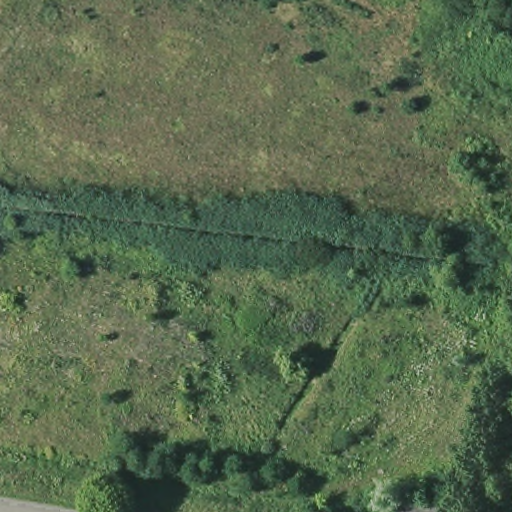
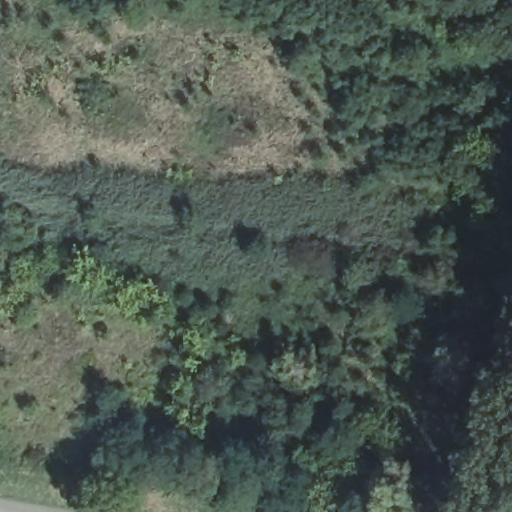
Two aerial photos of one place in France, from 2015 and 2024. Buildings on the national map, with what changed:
unchanged [(397,502),(448,512),(394,512),(397,502)]

